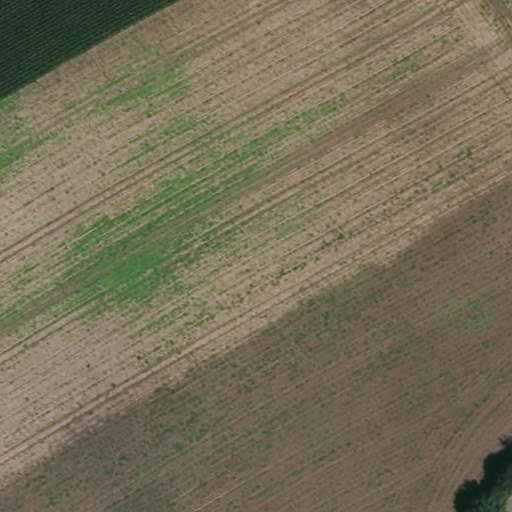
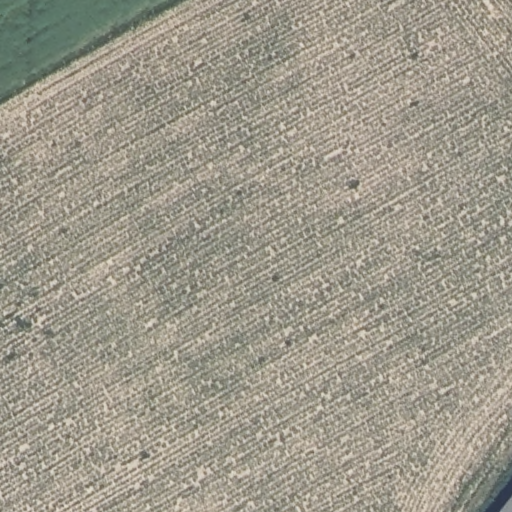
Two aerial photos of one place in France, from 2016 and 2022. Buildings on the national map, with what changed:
unchanged [(512,495),(512,512),(499,512),(512,495)]

